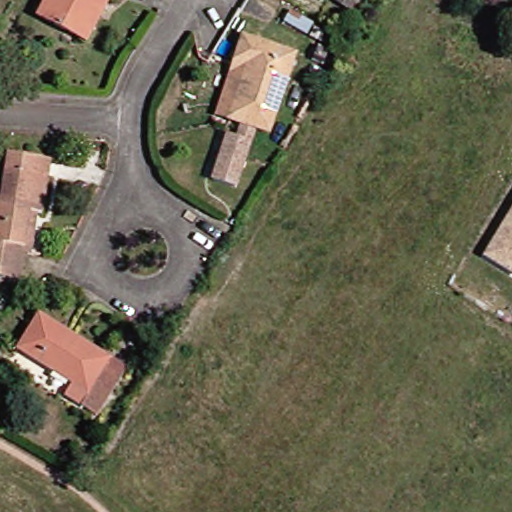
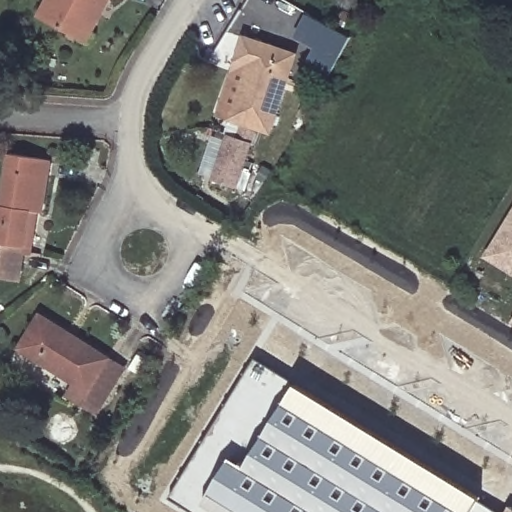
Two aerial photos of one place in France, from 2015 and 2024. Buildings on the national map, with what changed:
unchanged [(37,11),(43,0),(105,0),(83,42),(76,39),(50,26),(34,17),(37,11)]
unchanged [(337,0),(357,0),(349,11),(335,2),(337,0)]
unchanged [(235,189),(213,181),(228,135),(238,139),(243,125),(229,120),(217,116),(236,61),(244,37),(296,55),(269,133),(255,129),(235,189)]
unchanged [(23,255),(19,280),(0,277),(0,206),(1,206),(9,155),(50,162),(42,214),(36,213),(30,256),(23,255)]
unchanged [(512,212),(512,272),(486,257),(512,212)]
unchanged [(111,385),(92,417),(76,407),(85,393),(14,349),(35,317),(102,359),(120,371),(111,385)]
new [(299,382),(247,464),(234,456),(206,502),(220,511),(219,512),(196,512),(170,497),(257,357),(299,382)]
new [(206,502),(234,456),(247,464),(299,382),(482,497),(480,501),(473,512),(219,512),(220,511),(206,502)]
new [(500,512),(473,512),(480,501),(500,512)]
new [(512,506),(512,512),(506,512),(510,505),(512,506)]

